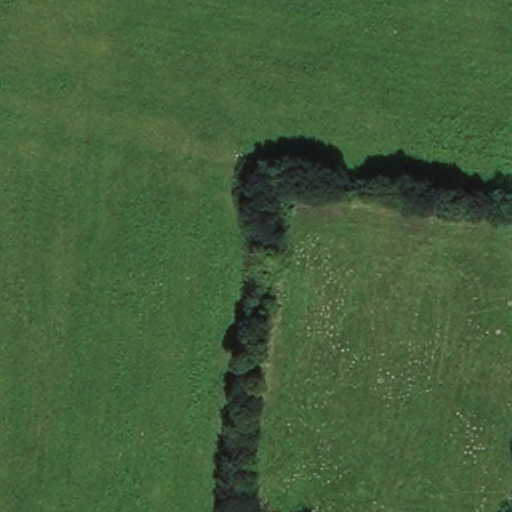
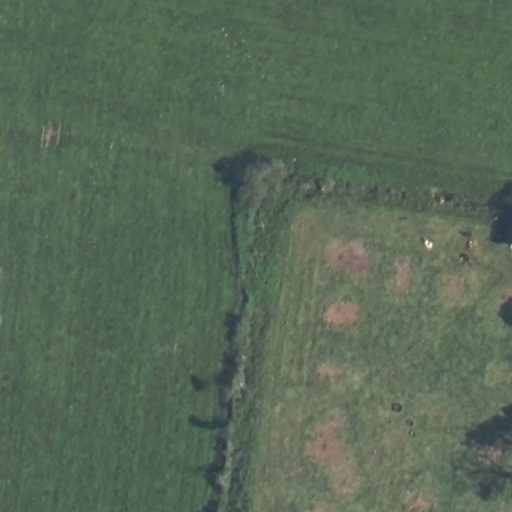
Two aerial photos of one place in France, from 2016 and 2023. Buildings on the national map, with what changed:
[]

